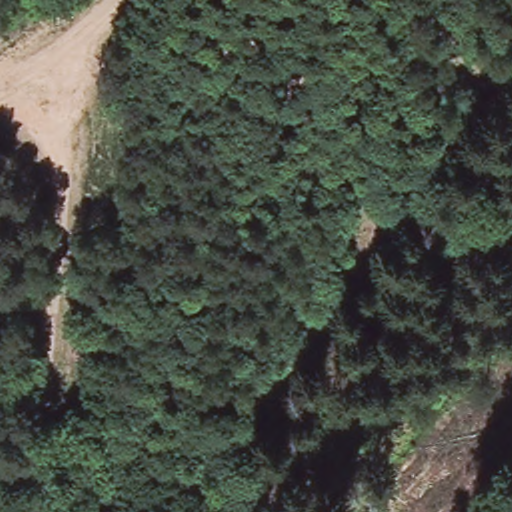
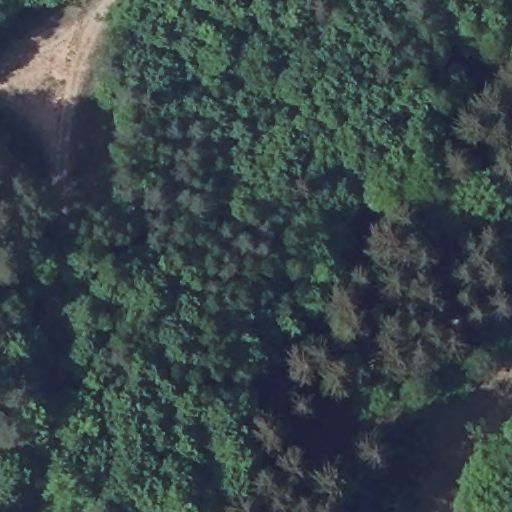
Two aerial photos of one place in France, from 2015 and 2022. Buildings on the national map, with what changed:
[]

